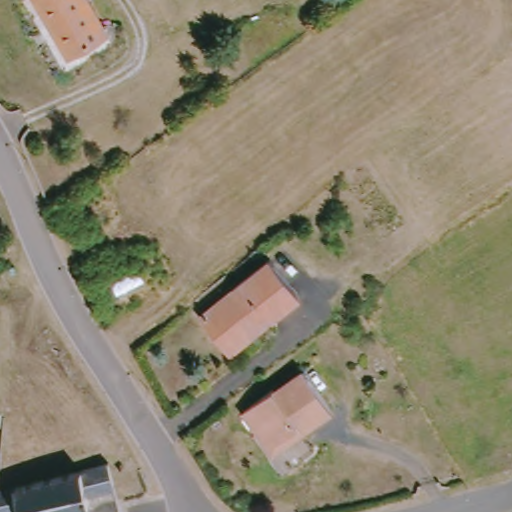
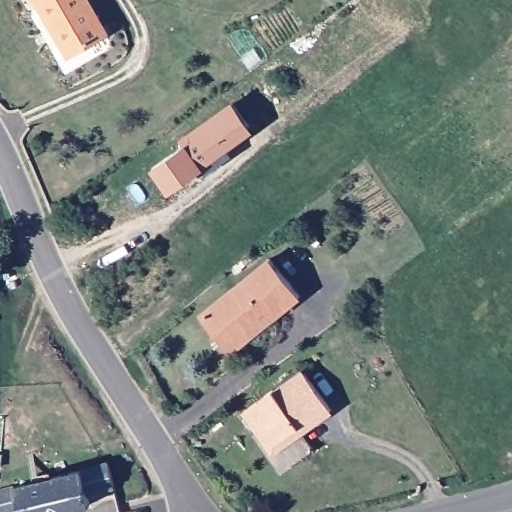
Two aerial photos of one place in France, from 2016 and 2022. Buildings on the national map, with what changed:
unchanged [(112,36),(73,60),(38,0),(92,0),(112,36)]
new [(183,140),(234,104),(251,127),(225,145),(233,156),(206,179),(200,171),(204,169),(188,144),(186,145),(183,140)]
new [(171,194),(152,169),(186,145),(188,144),(204,169),(200,171),(171,194)]
unchanged [(304,302),(277,324),(269,315),(261,322),(264,327),(246,341),(243,337),(226,349),(204,321),(274,265),(304,302)]
unchanged [(339,408),(308,429),(321,447),(286,471),(259,431),(266,426),(253,406),(281,387),(283,390),(313,370),(339,408)]
unchanged [(101,495),(103,503),(69,512),(32,512),(32,511),(30,512),(7,512),(4,500),(5,493),(13,490),(121,463),(128,487),(101,495)]

